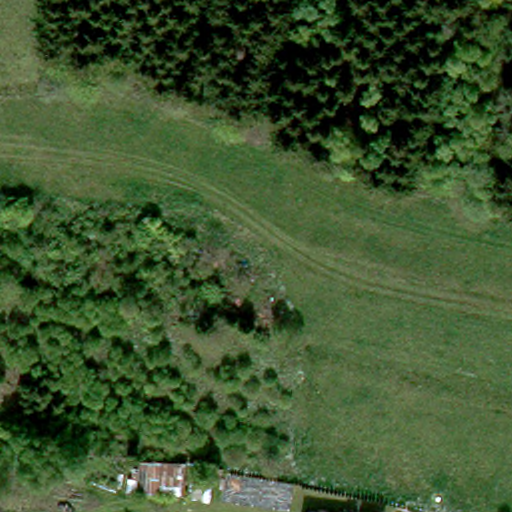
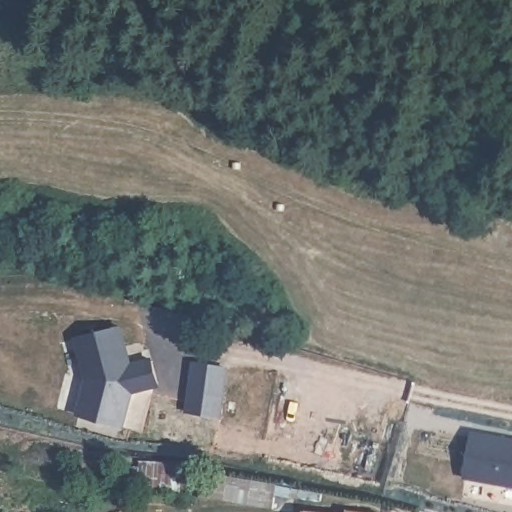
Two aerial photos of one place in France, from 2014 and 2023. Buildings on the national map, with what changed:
new [(153,356),(161,387),(132,394),(123,428),(74,415),(84,380),(74,337),(123,325),(131,361),(153,356)]
new [(228,367),(220,418),(185,412),(193,360),(228,367)]
new [(505,443),(504,449),(511,450),(512,443),(512,444),(512,490),(462,481),(470,436),(505,443)]
new [(184,495),(133,492),(136,460),(186,463),(184,495)]
unchanged [(318,512),(304,512),(304,510),(318,512)]

